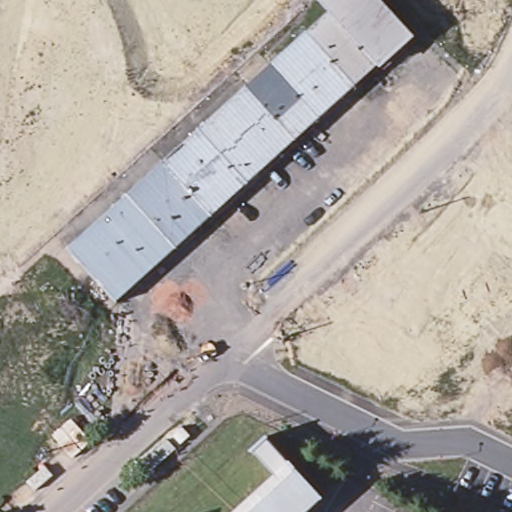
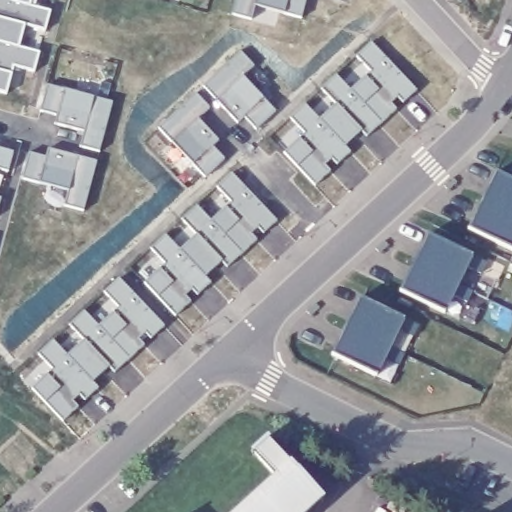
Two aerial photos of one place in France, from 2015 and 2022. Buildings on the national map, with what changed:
new [(30,6),(50,12),(45,31),(25,26),(20,48),(39,53),(34,72),(13,67),(7,94),(0,92),(0,0),(32,0),(30,6)]
new [(302,17),(257,3),(253,18),(233,12),(237,0),(307,0),(302,17)]
demolished [(335,15),(330,10),(321,0),(381,0),(414,38),(382,66),(379,63),(335,15)]
demolished [(311,36),(335,15),(379,63),(355,85),(311,36)]
demolished [(277,67),(311,36),(355,85),(320,116),(277,67)]
new [(418,90),(403,101),(398,96),(392,101),(399,108),(367,136),(361,129),(347,144),(355,151),(338,165),(333,158),(325,165),(332,171),(317,186),(285,151),(307,133),(292,117),(307,103),(320,116),(338,103),(322,87),(337,74),(350,88),(373,69),(357,54),(372,39),(418,90)]
new [(242,51),(255,64),(243,74),(276,110),(257,127),(247,115),(238,123),(204,84),(242,51)]
demolished [(200,128),(247,85),(252,90),(277,67),(320,116),(295,138),(261,169),(248,180),(212,213),(168,164),(205,132),(200,128)]
new [(113,101),(100,148),(82,143),(85,130),(55,123),(58,114),(41,110),(47,84),(113,101)]
new [(197,92),(210,108),(200,117),(220,139),(212,146),(225,158),(205,176),(157,128),(197,92)]
new [(8,171),(0,169),(0,148),(15,152),(8,171)]
new [(46,157),(48,149),(97,161),(85,211),(64,205),(67,189),(22,178),(29,153),(46,157)]
demolished [(132,197),(168,164),(212,213),(177,244),(132,197)]
new [(280,220),(265,235),(258,228),(252,233),(259,240),(228,267),(222,261),(207,275),(212,281),(198,296),(193,290),(187,295),(192,302),(177,317),(143,282),(167,262),(151,246),(166,232),(180,249),(198,232),(182,217),(197,203),(210,218),(232,200),(217,185),(232,170),(280,220)]
new [(497,171),(512,179),(512,251),(468,230),(497,171)]
new [(0,204),(0,196),(2,196),(0,204)]
demolished [(132,197),(177,244),(117,299),(73,251),(132,197)]
demolished [(352,370),(340,356),(512,202),(512,258),(352,370)]
new [(486,262),(480,273),(467,267),(458,285),(471,291),(465,302),(454,296),(443,313),(399,291),(428,234),(486,262)]
demolished [(372,391),(352,370),(512,258),(512,266),(372,391)]
new [(165,326),(152,338),(146,331),(140,337),(147,346),(115,372),(110,367),(93,381),(100,389),(86,400),(82,393),(73,400),(80,407),(64,421),(33,388),(55,367),(39,352),(53,337),(69,354),(86,339),(70,324),(86,309),(99,324),(120,305),(104,291),(118,276),(165,326)]
new [(417,325),(412,334),(400,329),(390,348),(405,354),(400,365),(385,359),(376,375),(332,355),(360,297),(417,325)]
demolished [(512,387),(512,421),(494,438),(477,419),(512,387)]
unchanged [(257,459),(273,445),(328,505),(325,507),(322,504),(314,512),(245,512),(278,482),(257,459)]

